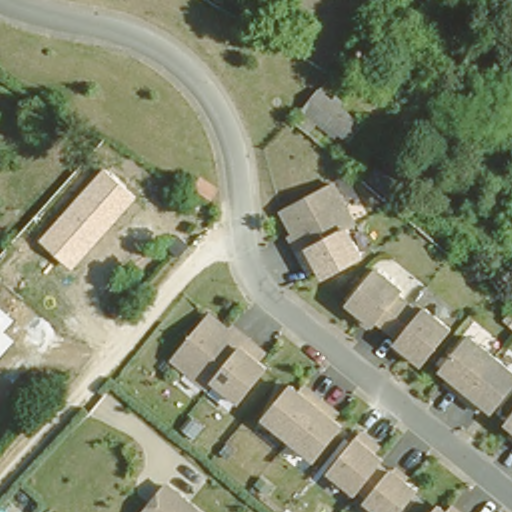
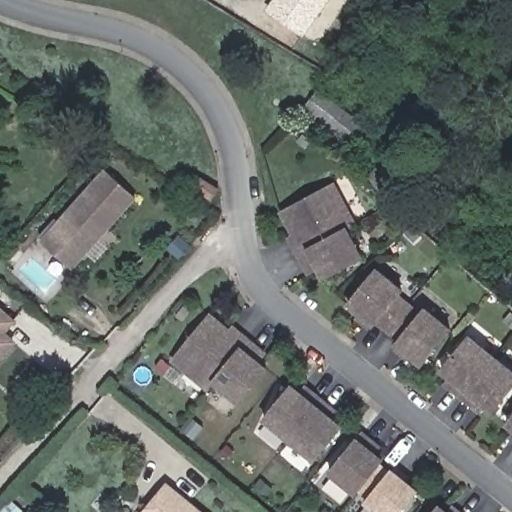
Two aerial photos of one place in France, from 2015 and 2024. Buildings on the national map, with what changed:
new [(301,35),(269,12),(277,0),(326,0),(301,35)]
unchanged [(343,142),(295,103),(313,80),(359,117),(343,142)]
unchanged [(372,160),(411,191),(398,209),(361,174),(372,160)]
unchanged [(201,182),(184,172),(190,162),(207,173),(201,182)]
unchanged [(71,270),(39,240),(104,168),(136,199),(71,270)]
unchanged [(303,270),(289,242),(286,237),(290,235),(279,213),(333,186),(353,228),(344,232),(358,260),(319,280),(315,270),(305,275),(303,270)]
unchanged [(396,345),(399,341),(397,340),(401,336),(377,316),(374,320),(373,320),(369,323),(357,312),(360,309),(349,300),(378,265),(403,285),(398,291),(421,310),(426,305),(451,325),(422,360),(409,350),(406,353),(396,345)]
unchanged [(3,333),(14,341),(0,357),(0,310),(13,321),(3,333)]
unchanged [(254,339),(248,347),(268,363),(240,397),(216,377),(209,385),(174,356),(208,315),(216,321),(223,313),(228,316),(250,336),(254,339)]
unchanged [(473,408),(450,388),(446,385),(451,378),(442,371),(469,337),(512,374),(512,387),(491,412),(483,405),(478,412),(473,408)]
unchanged [(334,410),(329,415),(338,422),(310,456),(260,415),(288,381),(297,388),(302,382),(306,386),(329,405),(334,410)]
unchanged [(507,425),(512,418),(512,430),(507,425)]
unchanged [(378,456),(384,462),(356,496),(325,472),(355,437),(363,426),(385,446),(378,456)]
unchanged [(510,438),(512,436),(512,440),(510,438)]
unchanged [(419,491),(402,512),(375,512),(364,502),(398,462),(412,475),(412,485),(419,491)]
unchanged [(196,512),(143,512),(164,485),(196,512)]
unchanged [(444,510),(449,504),(453,507),(458,512),(428,512),(435,503),(444,510)]

